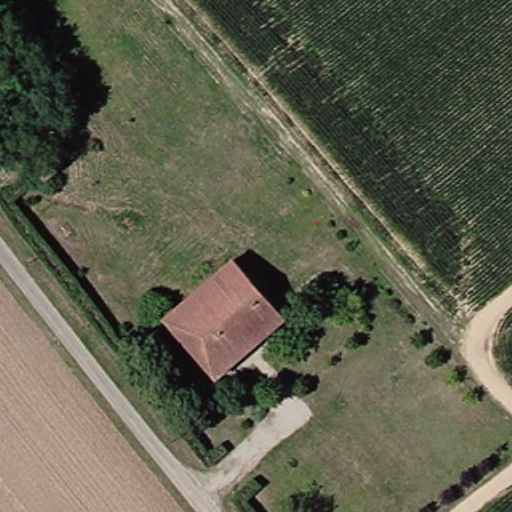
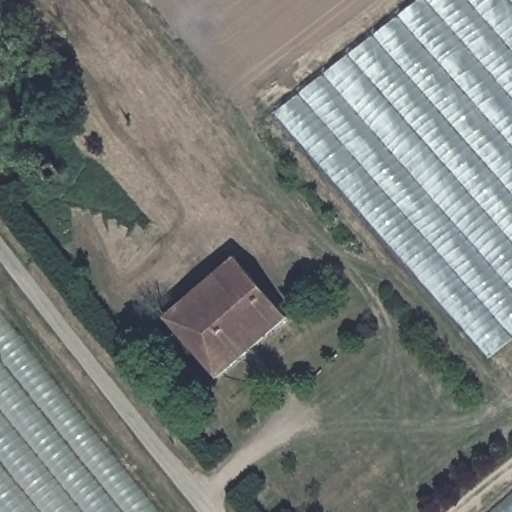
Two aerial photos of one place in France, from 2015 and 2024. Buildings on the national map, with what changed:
new [(419,0),(512,0),(512,341),(490,358),(276,113),(419,0)]
unchanged [(291,322),(223,379),(173,316),(241,258),(291,322)]
new [(161,512),(0,512),(0,313),(161,512)]
new [(512,512),(490,512),(512,494),(512,512)]

